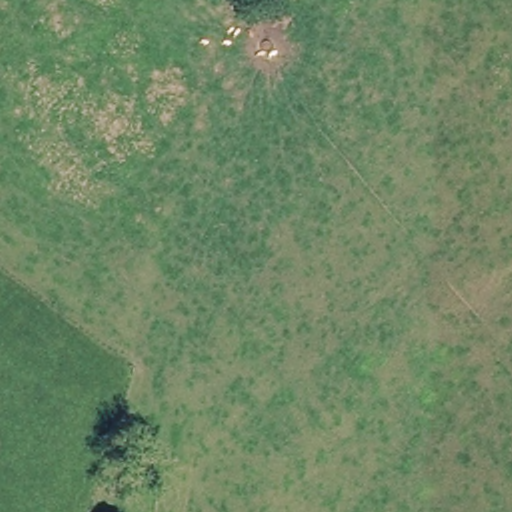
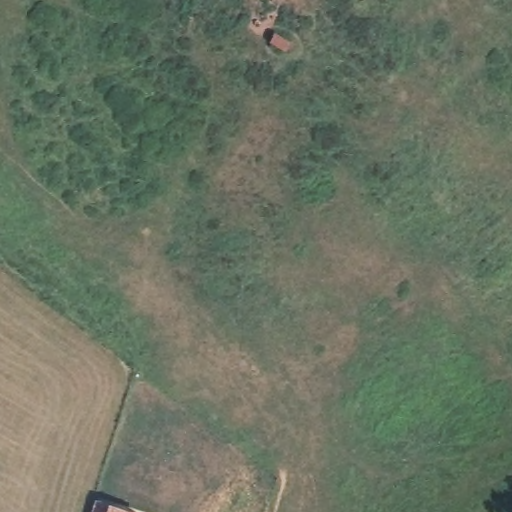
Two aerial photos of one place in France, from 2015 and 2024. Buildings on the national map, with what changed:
new [(95,504),(109,508),(111,504),(138,512),(93,512),(95,504)]

